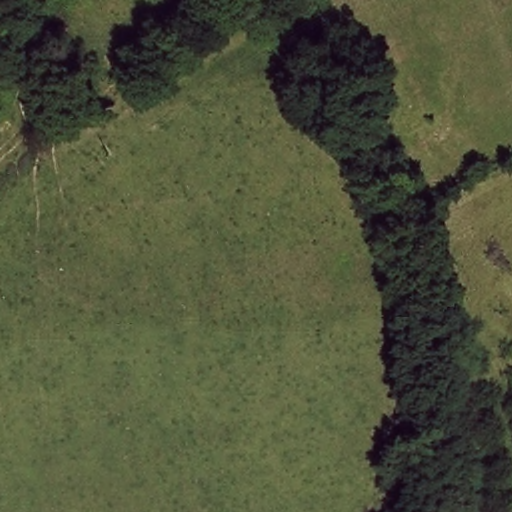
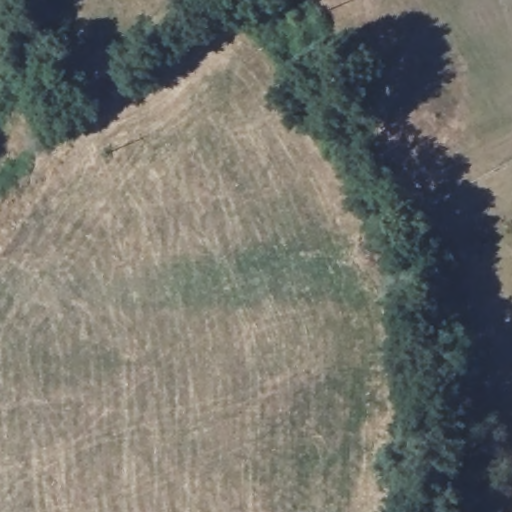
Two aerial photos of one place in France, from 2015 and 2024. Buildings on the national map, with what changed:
[]

